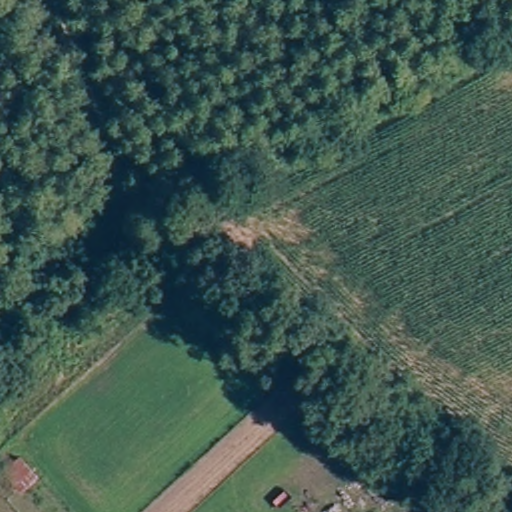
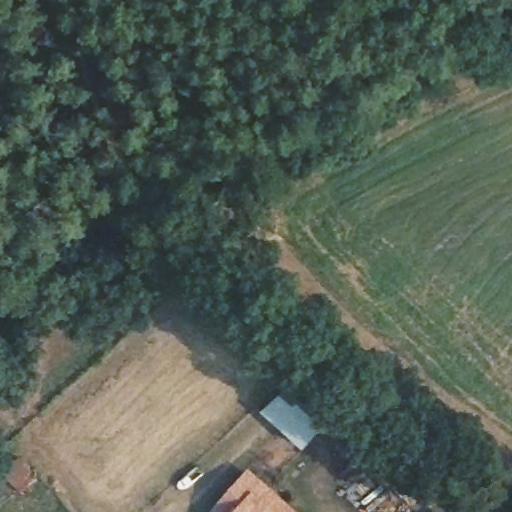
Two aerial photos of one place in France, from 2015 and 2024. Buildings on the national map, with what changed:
unchanged [(18,496),(0,476),(0,468),(18,453),(36,477),(18,496)]
new [(212,512),(248,469),(296,512),(212,512)]

